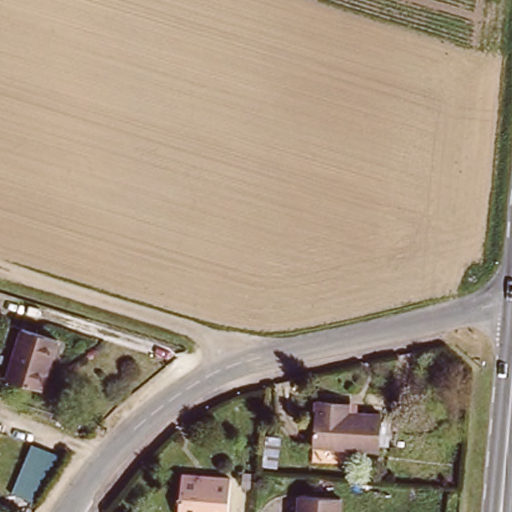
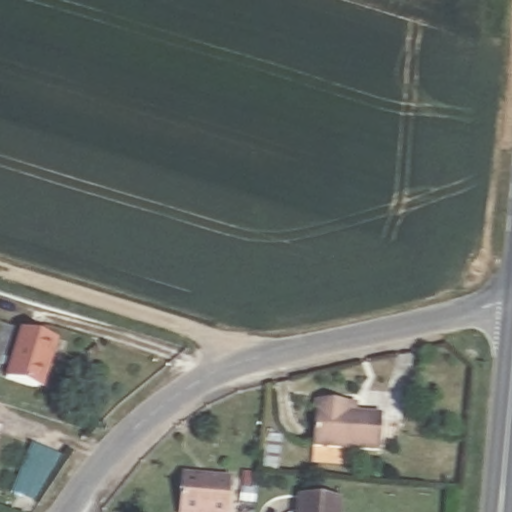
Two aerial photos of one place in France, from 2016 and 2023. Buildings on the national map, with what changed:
unchanged [(39,389),(7,381),(23,330),(60,342),(55,359),(45,392),(39,389)]
unchanged [(341,401),(355,402),(353,412),(385,416),(380,451),(315,444),(320,399),(341,401)]
unchanged [(185,471),(235,475),(232,512),(182,512),(185,471)]
unchanged [(302,493),(347,497),(345,512),(300,512),(302,493)]

